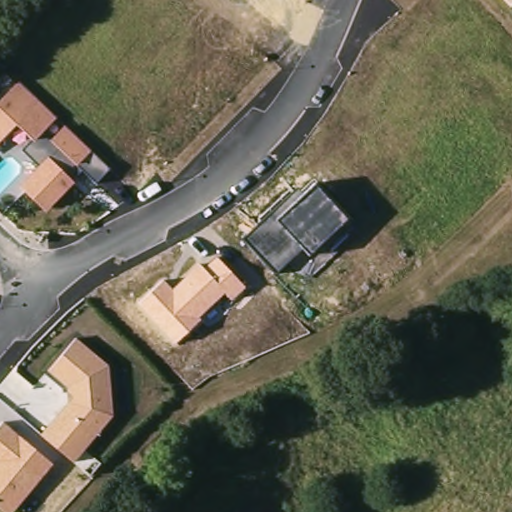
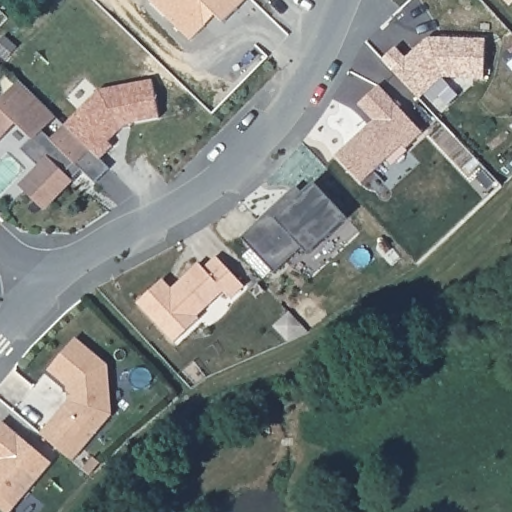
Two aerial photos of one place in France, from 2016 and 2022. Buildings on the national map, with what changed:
unchanged [(504,0),(512,0),(512,6),(510,7),(504,0)]
new [(406,59),(416,49),(422,44),(428,39),(485,40),(485,79),(443,78),(420,100),(383,60),(396,48),(406,59)]
new [(160,118),(122,126),(109,142),(114,146),(100,159),(65,123),(99,90),(151,79),(160,118)]
unchanged [(37,163),(22,148),(30,139),(17,126),(0,142),(0,102),(20,81),(57,117),(52,123),(60,130),(65,123),(110,169),(95,182),(81,169),(71,178),(77,183),(47,212),(20,183),(37,163)]
new [(375,121),(359,105),(379,86),(423,133),(407,149),(403,145),(362,184),(336,157),(375,121)]
unchanged [(296,188),(303,195),(313,185),(345,219),(311,254),(303,248),(276,274),(244,237),(296,188)]
unchanged [(161,280),(171,289),(200,264),(205,269),(216,257),(246,287),(231,300),(224,293),(197,317),(200,320),(175,343),(138,304),(161,280)]
new [(292,314),(311,334),(290,343),(276,328),(292,314)]
unchanged [(42,434),(68,399),(67,386),(50,372),(77,338),(112,368),(114,418),(76,464),(42,434)]
unchanged [(0,425),(5,420),(54,463),(14,512),(4,512),(0,509),(0,425)]

